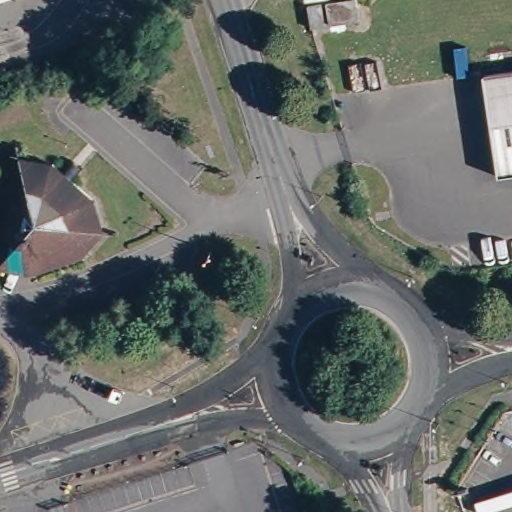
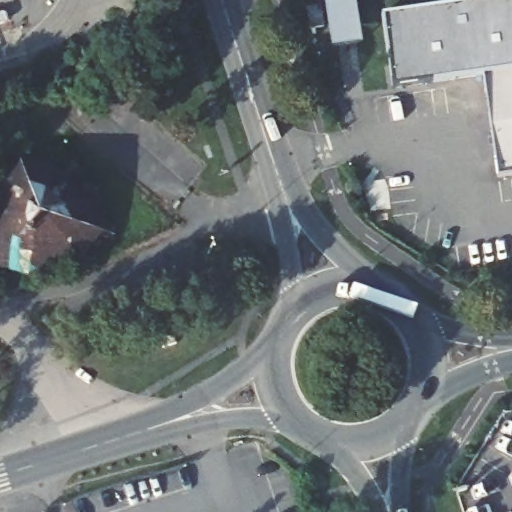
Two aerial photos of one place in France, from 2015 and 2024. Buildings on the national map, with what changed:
unchanged [(318,0),(319,2),(304,4),(304,0),(318,0)]
unchanged [(329,0),(323,1),(322,0),(329,0)]
new [(331,47),(323,1),(322,0),(357,0),(363,42),(331,47)]
new [(483,75),(393,85),(383,15),(492,0),(512,0),(512,71),(483,75)]
unchanged [(497,178),(483,75),(512,71),(512,176),(497,178)]
unchanged [(25,291),(0,267),(0,195),(48,179),(59,189),(70,176),(78,183),(68,195),(92,215),(80,272),(25,291)]
unchanged [(162,347),(177,342),(180,352),(164,357),(162,347)]

